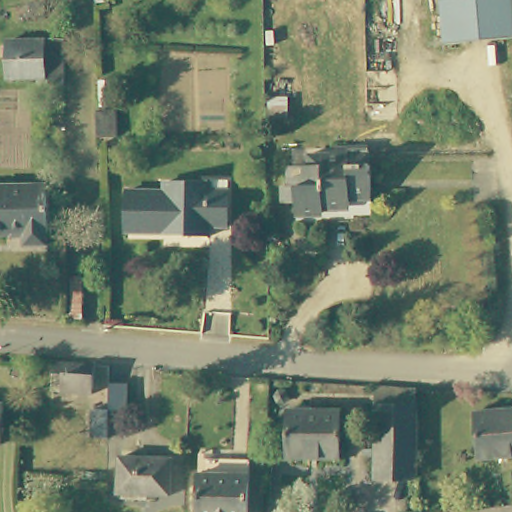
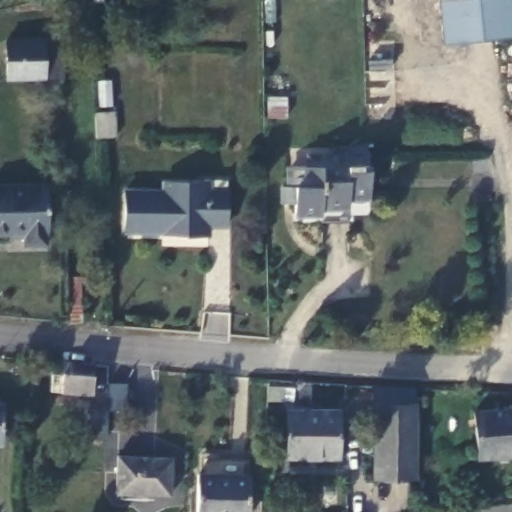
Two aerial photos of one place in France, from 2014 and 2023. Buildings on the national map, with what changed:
unchanged [(444,46),(439,0),(512,0),(512,40),(444,46)]
unchanged [(54,39),(54,76),(38,76),(0,77),(0,39),(35,39),(54,39)]
unchanged [(352,214),(352,218),(297,221),(297,210),(296,200),(285,200),(284,184),(295,183),(294,164),(294,150),(311,150),(314,150),(351,149),(351,150),(359,150),(366,150),(370,150),(371,164),(374,164),(374,191),(374,199),(374,213),(365,213),(352,214)]
unchanged [(48,227),(44,227),(45,239),(24,239),(24,227),(0,228),(0,179),(47,179),(48,227)]
unchanged [(128,193),(164,194),(164,186),(212,186),(212,192),(230,193),(228,229),(210,229),(210,239),(187,239),(187,236),(126,235),(128,193)]
unchanged [(81,354),(91,356),(89,384),(49,381),(51,352),(81,354)]
unchanged [(123,374),(123,401),(105,401),(105,374),(123,374)]
unchanged [(378,397),(419,399),(418,487),(377,488),(378,397)]
unchanged [(89,401),(105,401),(104,429),(89,429),(89,412),(89,401)]
unchanged [(3,446),(0,445),(0,405),(5,405),(3,446)]
unchanged [(477,411),(512,409),(512,456),(479,458),(477,411)]
unchanged [(289,411),(343,411),(342,459),(289,459),(289,411)]
unchanged [(120,458),(173,460),(172,494),(119,493),(120,458)]
unchanged [(196,478),(205,478),(205,464),(246,467),(243,512),(194,512),(196,478)]

